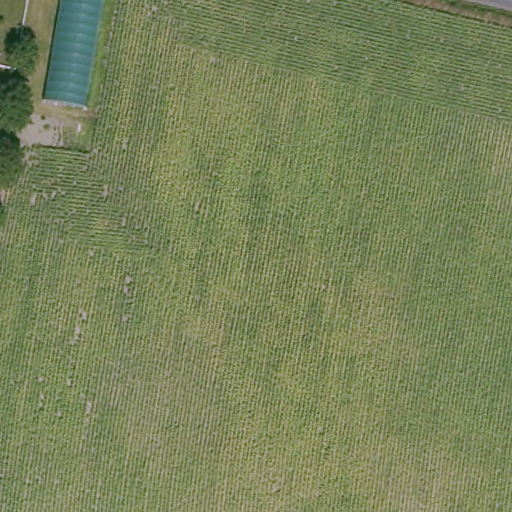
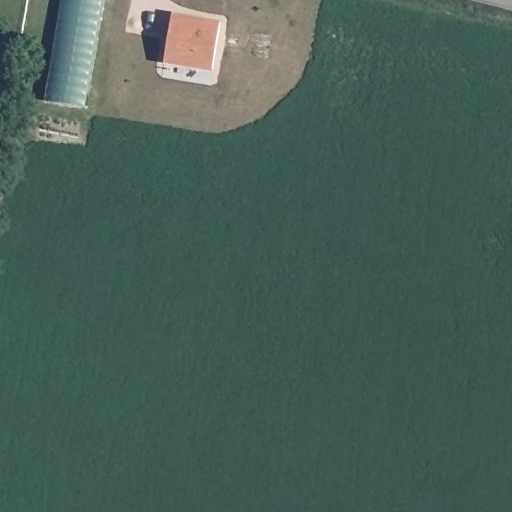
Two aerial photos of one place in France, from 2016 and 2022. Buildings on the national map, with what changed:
unchanged [(43,100),(60,0),(104,0),(86,108),(43,100)]
new [(164,62),(173,14),(221,21),(212,71),(164,62)]

